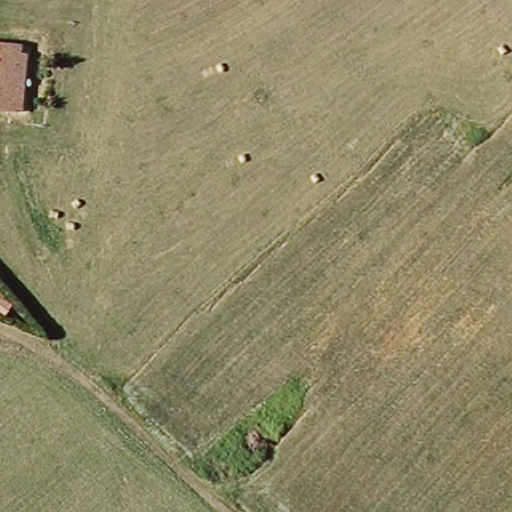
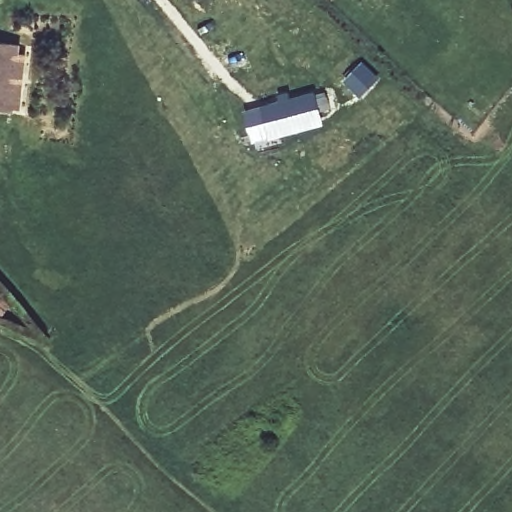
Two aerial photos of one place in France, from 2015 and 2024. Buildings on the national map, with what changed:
unchanged [(20,46),(10,113),(0,112),(0,43),(20,46)]
new [(363,60),(380,77),(359,99),(342,81),(363,60)]
new [(326,88),(332,111),(322,114),(325,125),(251,145),(241,109),(326,88)]

